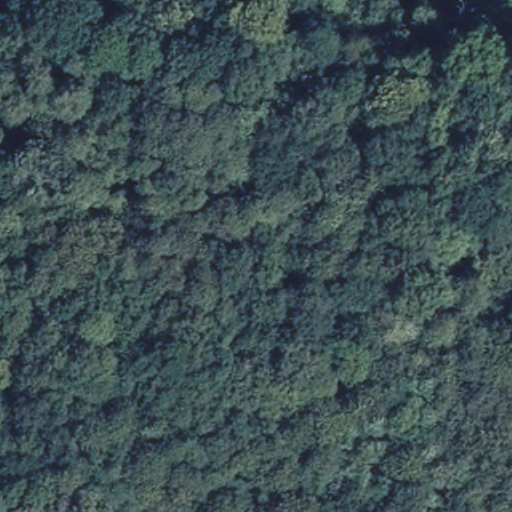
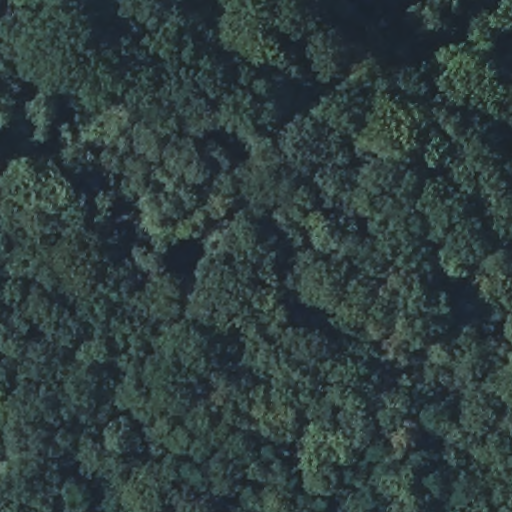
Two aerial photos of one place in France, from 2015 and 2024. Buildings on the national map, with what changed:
[]

